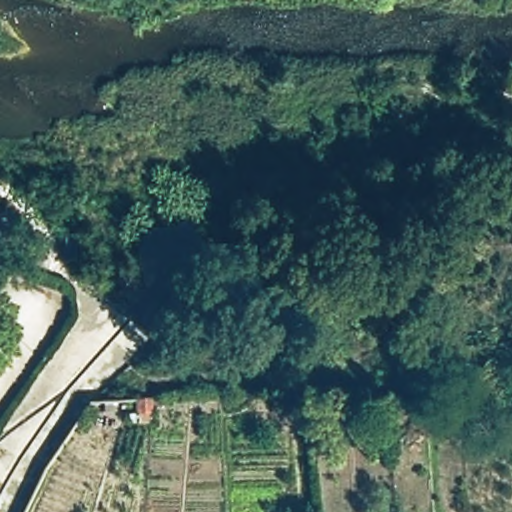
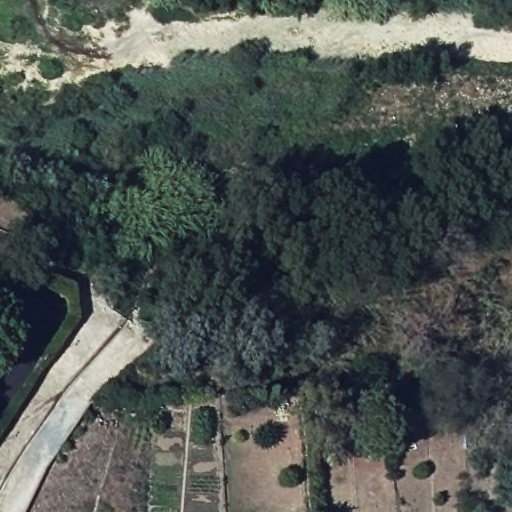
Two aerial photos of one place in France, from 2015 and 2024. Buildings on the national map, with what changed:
unchanged [(133,396),(153,394),(154,411),(134,413),(133,396)]

